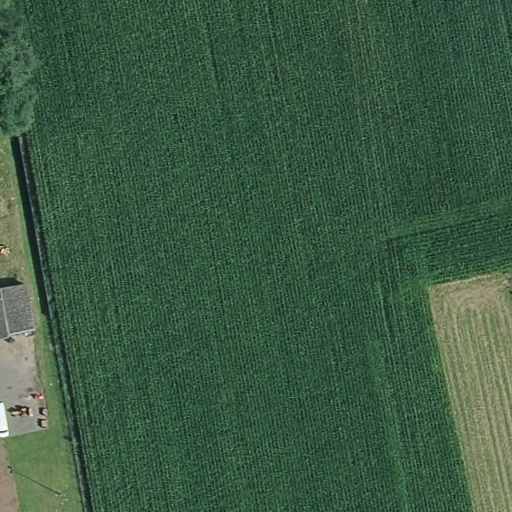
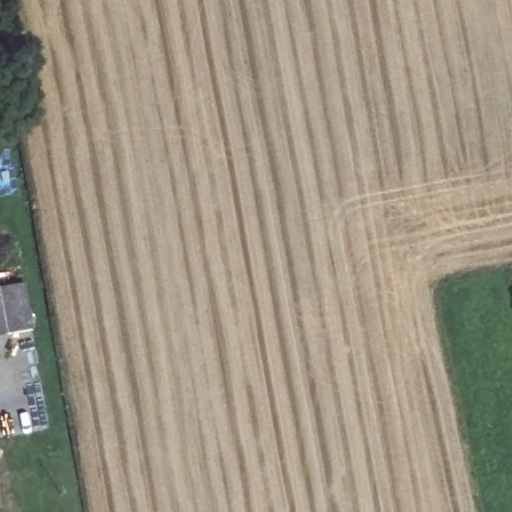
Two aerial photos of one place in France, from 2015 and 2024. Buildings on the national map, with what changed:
unchanged [(23,290),(31,338),(0,343),(0,293),(23,290)]

